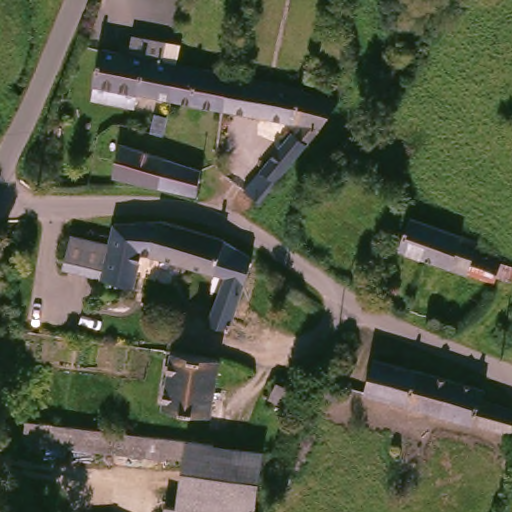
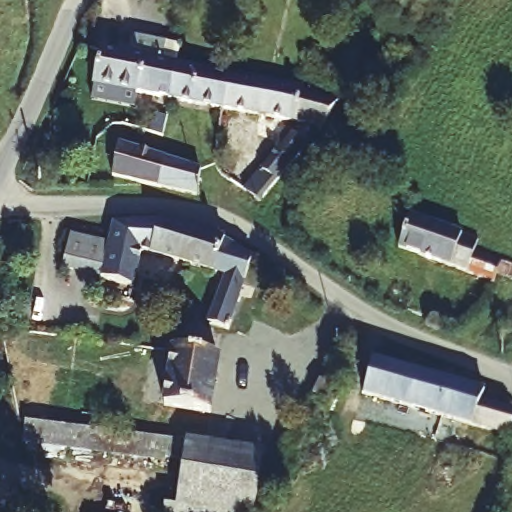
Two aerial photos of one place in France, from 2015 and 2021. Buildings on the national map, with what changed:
unchanged [(102,99),(105,84),(111,51),(138,56),(143,34),(166,39),(161,60),(188,64),(180,99),(147,92),(144,107),(102,99)]
unchanged [(188,64),(240,74),(239,81),(234,109),(180,99),(188,64)]
unchanged [(336,123),(270,200),(256,191),(302,133),(309,135),(316,125),(234,109),(239,81),(240,74),(312,87),(348,100),(336,123)]
unchanged [(200,190),(151,180),(119,171),(124,150),(205,166),(200,190)]
unchanged [(493,278),(401,244),(411,212),(432,219),(475,235),(474,249),(500,258),(512,263),(512,276),(495,270),(493,278)]
unchanged [(235,325),(214,319),(227,270),(146,250),(138,281),(106,273),(107,268),(65,257),(72,230),(114,241),(119,217),(165,217),(173,220),(239,239),(258,252),(235,325)]
unchanged [(219,359),(210,413),(166,407),(175,352),(219,359)]
unchanged [(384,359),(495,391),(492,401),(512,407),(512,434),(376,393),(384,359)]
unchanged [(315,395),(322,381),(341,391),(335,404),(315,395)]
unchanged [(303,400),(298,411),(271,399),(276,388),(303,400)]
unchanged [(185,462),(26,439),(29,421),(188,443),(185,462)]
unchanged [(178,509),(185,462),(188,443),(260,459),(252,512),(200,512),(178,509)]
unchanged [(200,512),(166,512),(166,507),(178,509),(200,512)]

